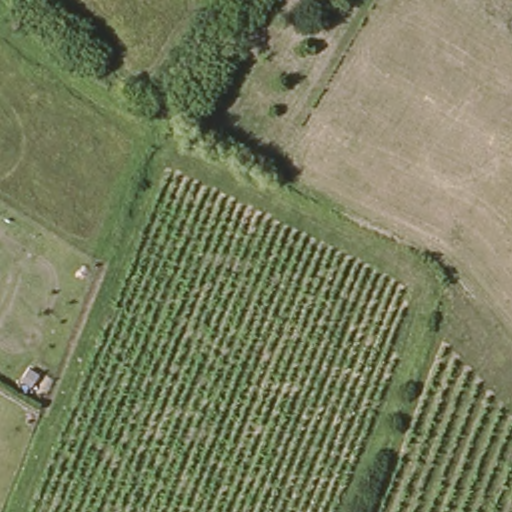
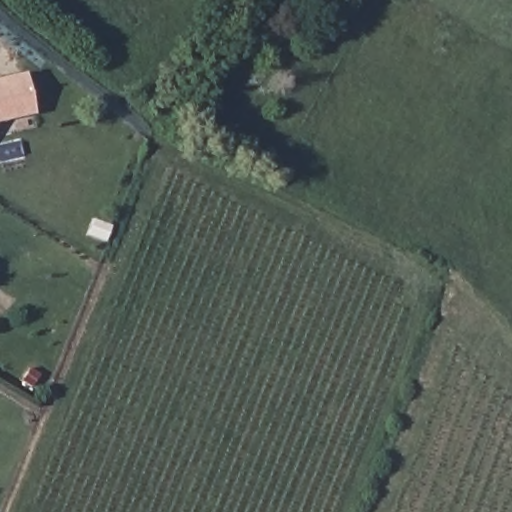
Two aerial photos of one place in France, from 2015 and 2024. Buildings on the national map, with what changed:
new [(24,72),(34,115),(0,122),(0,78),(24,72)]

